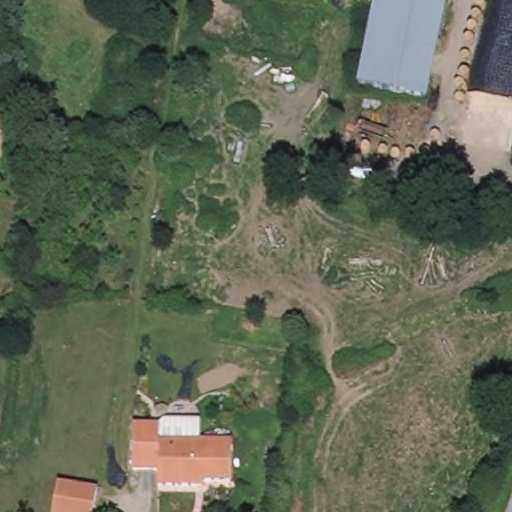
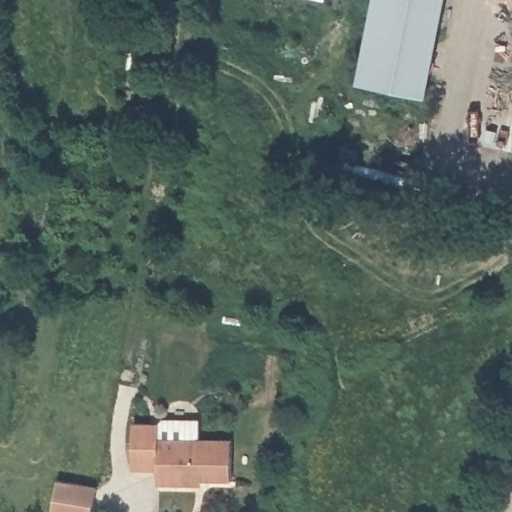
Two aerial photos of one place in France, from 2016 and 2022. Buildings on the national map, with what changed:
unchanged [(363,83),(382,0),(451,0),(432,97),(363,83)]
unchanged [(165,440),(236,438),(235,481),(206,481),(206,487),(162,486),(161,470),(137,470),(136,420),(164,421),(165,440)]
unchanged [(101,486),(96,512),(56,512),(61,480),(101,486)]

